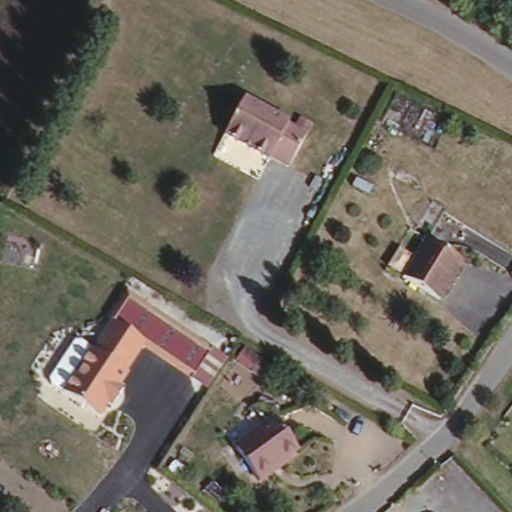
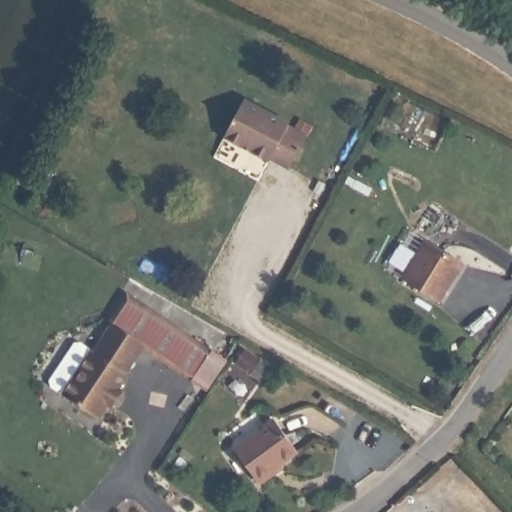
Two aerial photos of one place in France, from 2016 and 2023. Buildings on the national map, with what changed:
unchanged [(288,120),(287,124),(306,135),(288,165),(272,153),(268,157),(227,133),(247,97),(288,120)]
unchanged [(268,157),(258,179),(215,156),(227,133),(268,157)]
unchanged [(464,260),(437,296),(405,273),(427,235),(464,260)]
unchanged [(118,320),(116,317),(132,296),(215,351),(197,374),(148,342),(118,320)]
unchanged [(118,320),(148,342),(126,371),(128,372),(119,386),(123,389),(112,405),(107,402),(97,415),(62,389),(47,381),(77,340),(94,348),(96,350),(118,320)]
unchanged [(275,366),(263,382),(235,361),(247,346),(275,366)]
unchanged [(272,416),(297,449),(258,479),(232,447),(272,416)]

